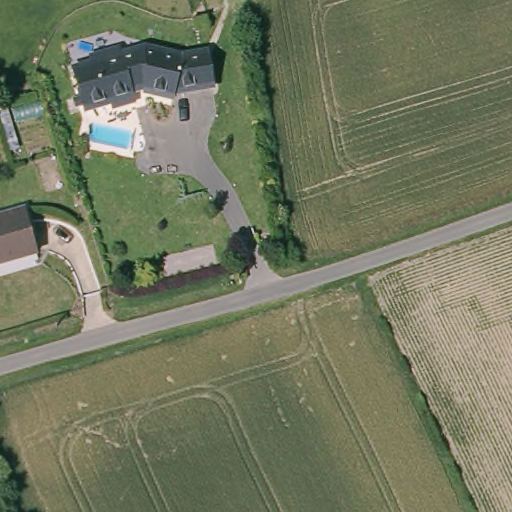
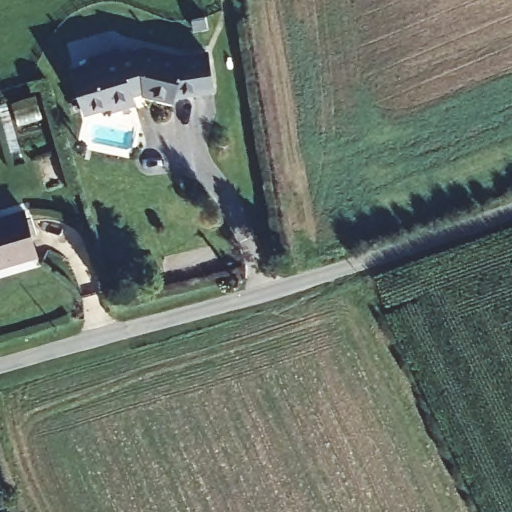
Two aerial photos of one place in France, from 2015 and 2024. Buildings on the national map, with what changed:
unchanged [(155,50),(183,59),(209,55),(210,57),(215,92),(179,95),(173,102),(147,96),(146,91),(130,95),(135,105),(115,110),(115,106),(88,114),(77,74),(95,69),(97,68),(95,57),(120,50),(121,60),(150,51),(155,50)]
unchanged [(33,252),(0,261),(0,209),(21,204),(33,252)]

